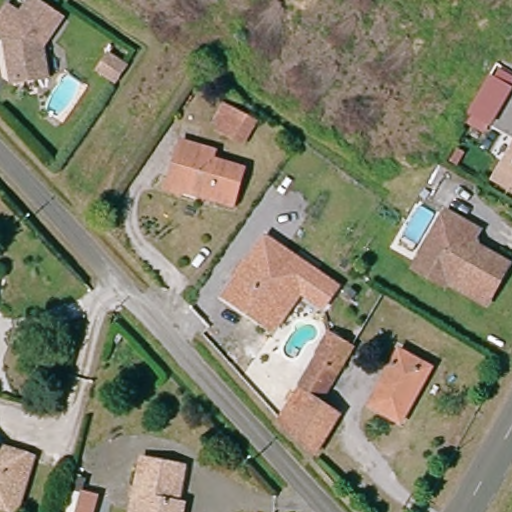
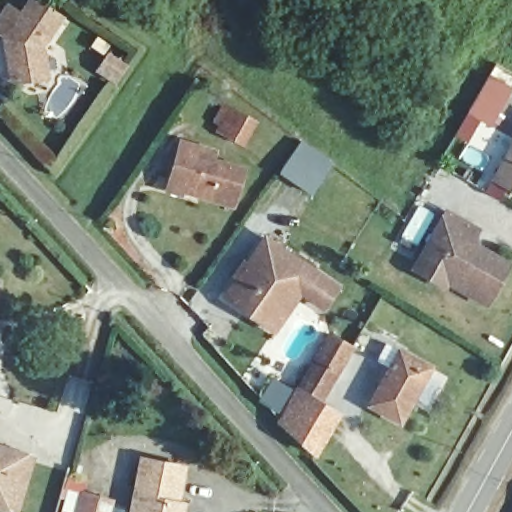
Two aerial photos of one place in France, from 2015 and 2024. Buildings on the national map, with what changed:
unchanged [(22,10),(28,0),(41,0),(65,17),(47,39),(52,76),(15,83),(5,36),(0,33),(0,13),(8,0),(22,10)]
unchanged [(95,79),(107,59),(127,73),(112,92),(95,79)]
unchanged [(512,97),(496,125),(474,112),(495,77),(512,88),(512,97)]
unchanged [(256,121),(247,140),(226,133),(234,110),(256,121)]
unchanged [(160,191),(165,173),(172,175),(186,137),(218,147),(216,157),(244,168),(232,205),(186,188),(182,185),(175,197),(160,191)]
new [(302,141),(332,164),(312,195),(281,171),(302,141)]
unchanged [(512,146),(512,185),(497,176),(512,146)]
unchanged [(415,263),(427,244),(452,204),(486,228),(481,239),(508,260),(487,295),(457,274),(453,277),(447,283),(415,263)]
unchanged [(342,285),(323,310),(302,294),(275,334),(220,296),(266,231),(342,285)]
unchanged [(280,394),(287,381),(305,352),(315,358),(328,334),(354,351),(340,374),(324,405),(341,415),(317,458),(283,426),(295,403),(280,394)]
unchanged [(425,368),(400,417),(372,401),(398,353),(425,368)]
unchanged [(32,454),(20,510),(0,505),(0,447),(32,454)]
unchanged [(176,502),(182,504),(182,512),(130,512),(142,454),(181,461),(176,502)]
unchanged [(103,512),(84,512),(91,488),(107,494),(103,512)]

